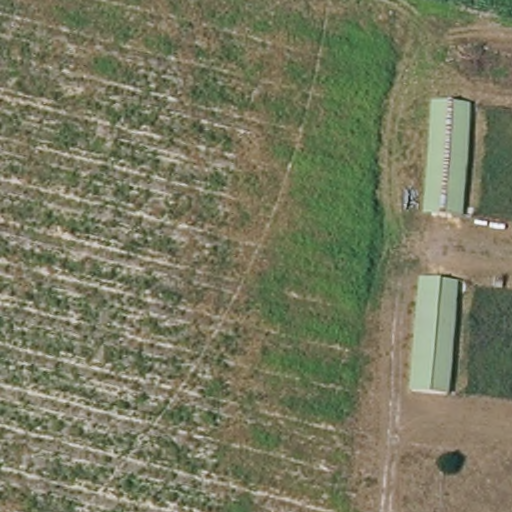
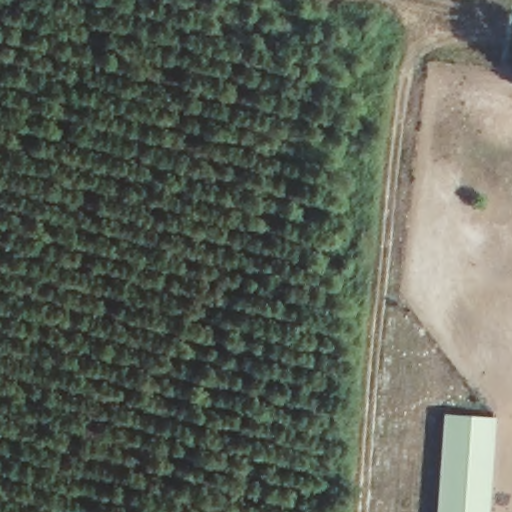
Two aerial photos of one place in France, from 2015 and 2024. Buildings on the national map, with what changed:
demolished [(429,220),(437,106),(471,109),(465,222),(429,220)]
demolished [(416,398),(422,284),(460,288),(453,401),(416,398)]
new [(436,512),(442,414),(496,417),(489,512),(436,512)]

